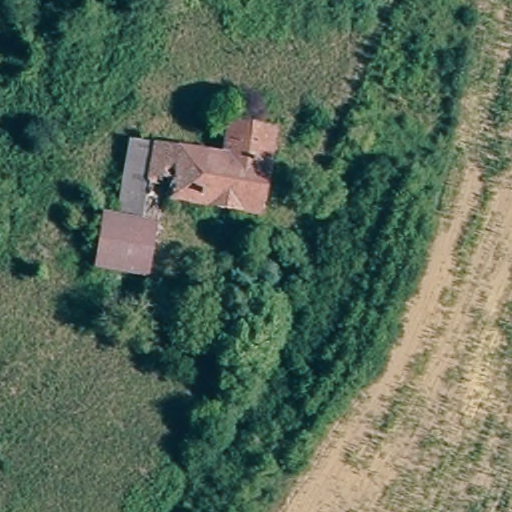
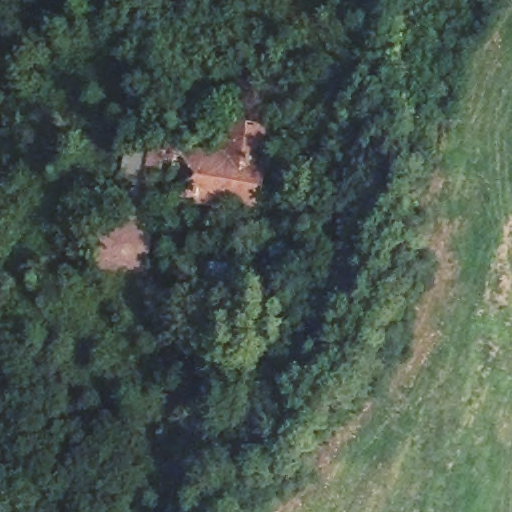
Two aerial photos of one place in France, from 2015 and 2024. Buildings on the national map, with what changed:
unchanged [(263,214),(159,199),(147,274),(96,266),(105,216),(120,218),(133,142),(222,156),(227,122),(277,130),(263,214)]

